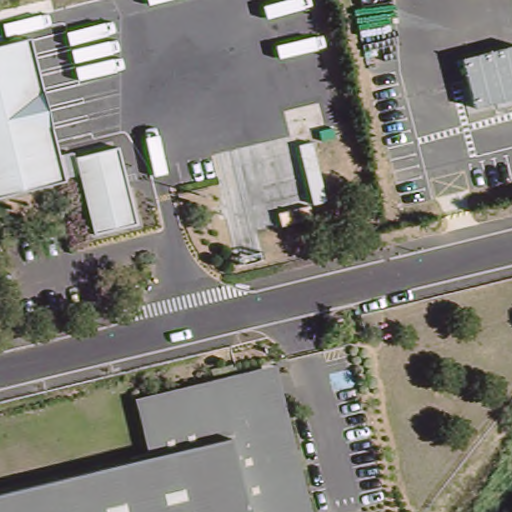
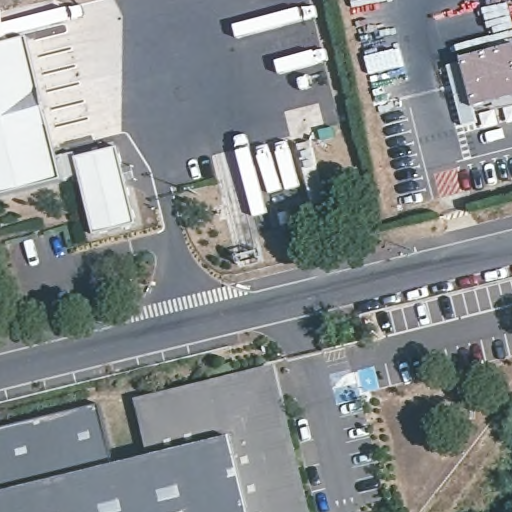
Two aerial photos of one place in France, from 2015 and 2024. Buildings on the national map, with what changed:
unchanged [(0,197),(0,45),(29,37),(64,181),(0,197)]
unchanged [(477,106),(464,60),(512,48),(512,97),(477,106)]
unchanged [(138,225),(93,235),(74,157),(118,146),(138,225)]
unchanged [(313,219),(281,226),(278,213),(309,205),(313,219)]
unchanged [(0,493),(154,456),(141,402),(271,370),(306,512),(0,512),(0,493)]
new [(0,493),(0,430),(101,405),(115,465),(0,493)]

